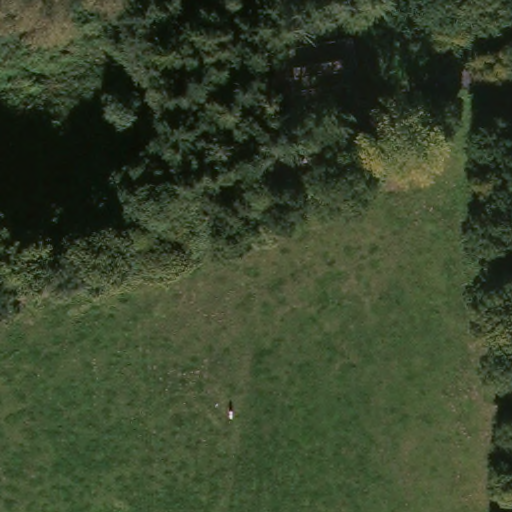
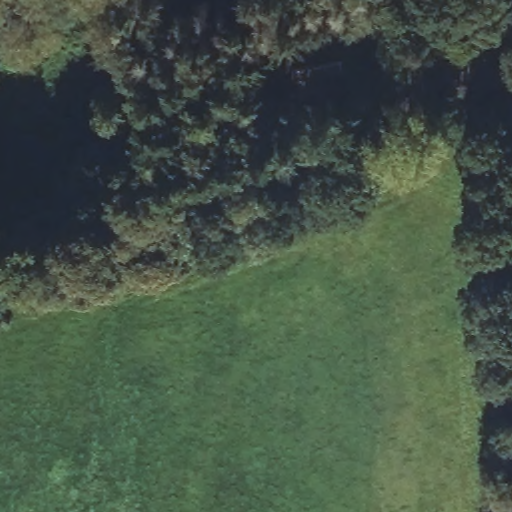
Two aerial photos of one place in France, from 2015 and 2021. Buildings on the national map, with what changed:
unchanged [(355,34),(362,80),(297,91),(295,75),(277,77),(271,48),(355,34)]

